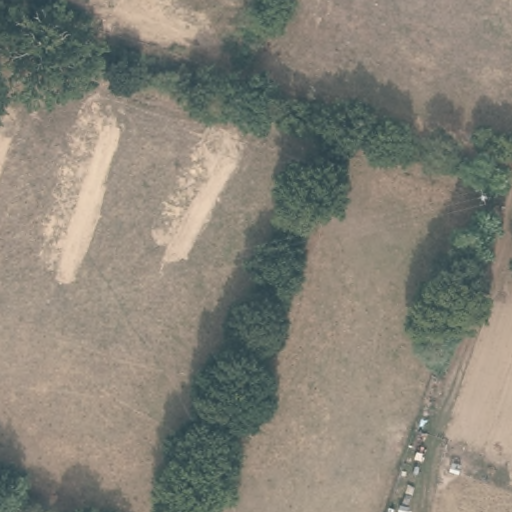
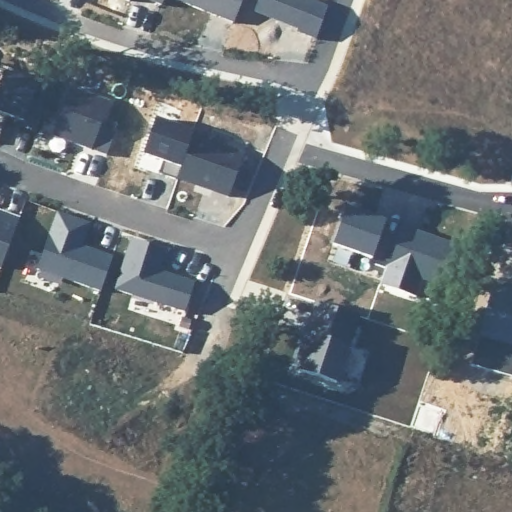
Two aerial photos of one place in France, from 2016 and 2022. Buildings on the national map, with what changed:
new [(130,1),(127,0),(130,0),(130,1)]
new [(164,6),(149,0),(166,0),(164,6)]
new [(234,23),(177,0),(243,0),(234,23)]
new [(259,0),(311,0),(328,7),(317,40),(297,33),(299,28),(255,9),(259,0)]
new [(53,90),(36,131),(21,125),(23,122),(0,113),(0,85),(5,72),(53,90)]
new [(108,156),(92,151),(53,137),(71,88),(110,102),(101,127),(116,133),(108,156)]
new [(159,173),(163,162),(144,155),(156,119),(193,131),(193,136),(178,179),(159,173)]
new [(178,179),(193,136),(244,154),(229,197),(213,191),(195,185),(178,179)]
new [(349,204),(389,217),(373,264),(333,249),(349,204)]
new [(90,224),(83,247),(92,250),(113,257),(101,292),(38,270),(57,213),(90,224)]
new [(19,220),(1,269),(0,268),(0,220),(3,214),(19,220)]
new [(402,226),(457,244),(443,284),(422,277),(415,299),(382,288),(402,226)]
new [(131,239),(167,251),(160,272),(195,283),(185,313),(115,290),(131,239)]
new [(362,317),(340,386),(299,372),(304,357),(299,356),(316,304),(362,317)]

